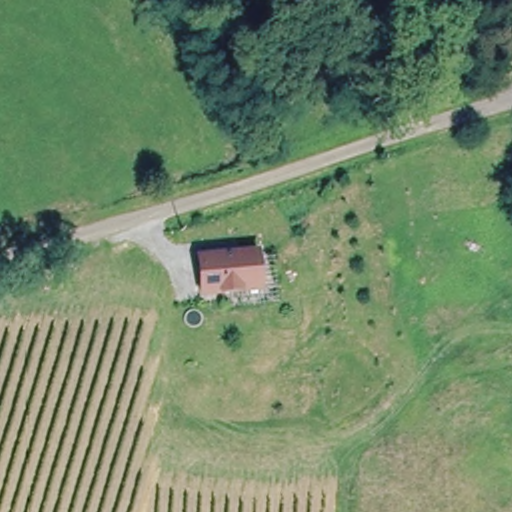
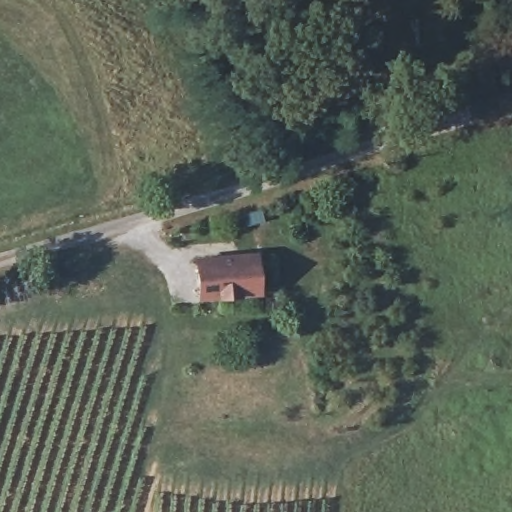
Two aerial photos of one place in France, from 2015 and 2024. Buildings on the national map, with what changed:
unchanged [(193,291),(188,254),(247,246),(248,253),(252,283),(213,289),(193,291)]
unchanged [(252,283),(248,253),(263,251),(269,296),(215,303),(213,289),(252,283)]

